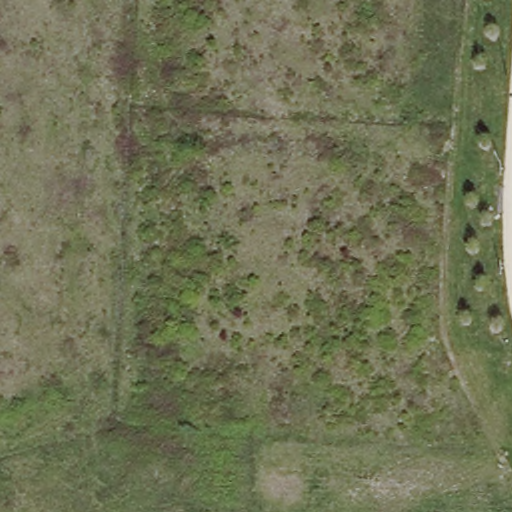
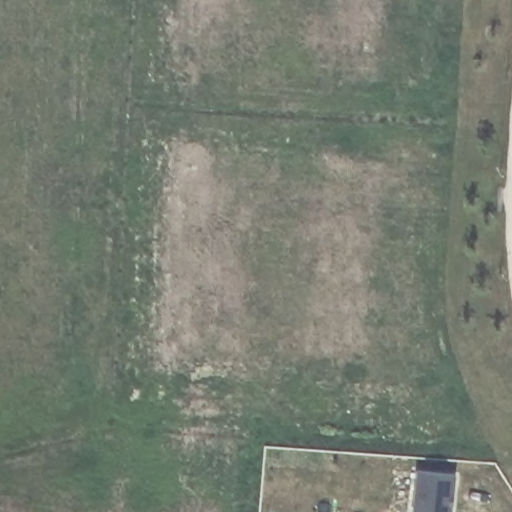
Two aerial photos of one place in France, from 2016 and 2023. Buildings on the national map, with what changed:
new [(417,470),(457,474),(453,512),(414,512),(417,470)]

